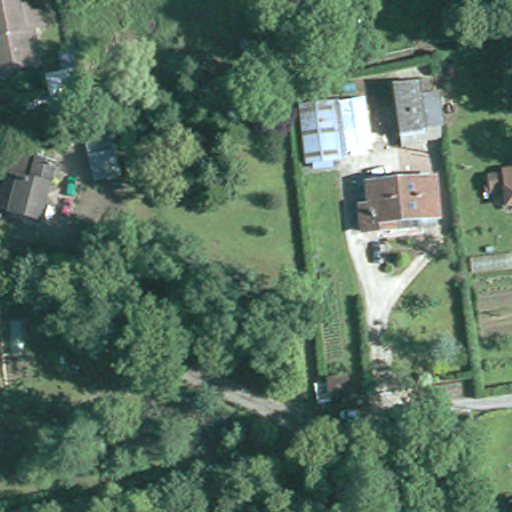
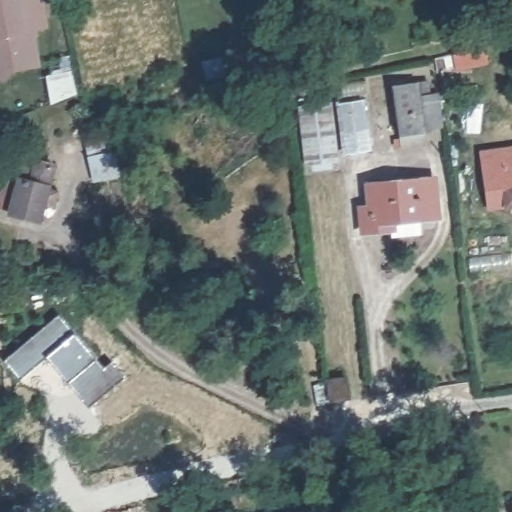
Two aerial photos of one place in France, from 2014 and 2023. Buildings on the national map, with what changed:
unchanged [(34,28),(41,63),(14,69),(10,79),(0,75),(0,0),(44,0),(49,25),(34,28)]
unchanged [(402,80),(426,77),(432,128),(408,131),(402,80)]
unchanged [(373,143),(349,147),(342,97),(366,94),(373,143)]
unchanged [(341,156),(310,160),(303,101),(334,97),(341,156)]
unchanged [(16,211),(21,194),(14,192),(17,181),(14,181),(21,154),(59,164),(53,187),(64,190),(60,206),(49,204),(45,219),(16,211)]
unchanged [(505,190),(490,192),(487,170),(512,167),(512,202),(505,203),(505,190)]
unchanged [(437,217),(418,219),(418,227),(392,229),(393,232),(373,234),(369,184),(434,177),(437,217)]
new [(68,382),(47,357),(20,378),(4,359),(59,313),(104,367),(112,360),(125,376),(95,401),(88,407),(68,382)]
unchanged [(348,398),(330,401),(327,380),(345,377),(348,398)]

